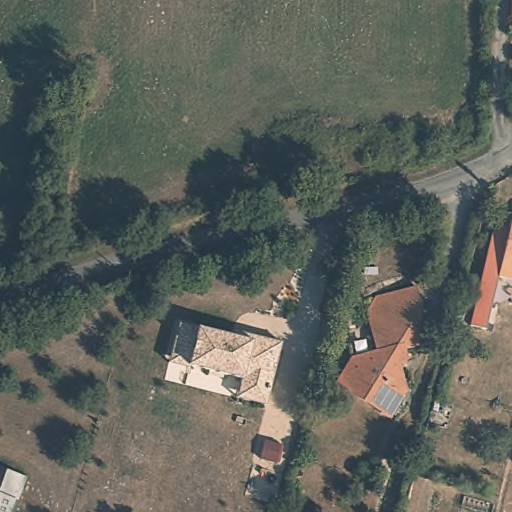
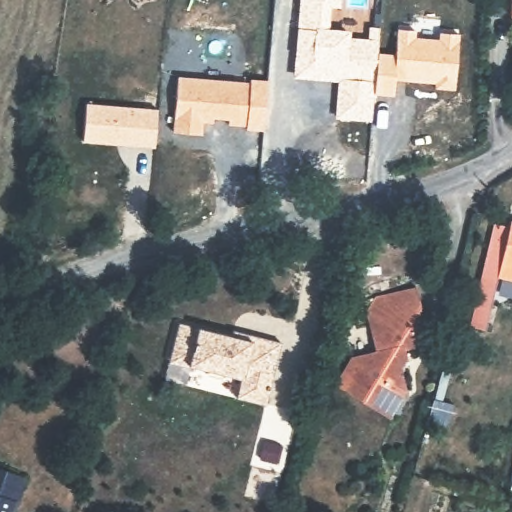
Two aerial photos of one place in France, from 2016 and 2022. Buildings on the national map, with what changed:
new [(311,78),(313,58),(299,57),(301,29),(303,0),(340,0),(339,7),(330,6),(329,30),(349,31),(349,38),(373,40),(374,28),(382,28),(380,53),(399,55),(399,29),(417,30),(417,37),(439,39),(440,32),(462,34),(458,89),(436,87),(437,81),(396,77),(394,95),(375,93),(373,120),(336,116),(340,79),(311,78)]
unchanged [(509,0),(512,0),(512,11),(508,10),(509,0)]
new [(178,76),(250,81),(250,78),(268,80),(264,131),(246,130),(246,126),(229,125),(229,120),(213,118),(212,124),(205,124),(204,135),(172,133),(178,76)]
new [(88,102),(159,109),(156,149),(83,142),(88,102)]
unchanged [(508,230),(510,224),(512,225),(512,283),(497,279),(484,332),(468,328),(494,226),(508,230)]
unchanged [(421,349),(406,351),(407,358),(399,360),(405,393),(385,418),(375,411),(377,403),(352,383),(342,384),(333,377),(351,354),(374,350),(368,314),(378,299),(418,291),(422,309),(414,311),(421,349)]
unchanged [(187,365),(186,368),(170,364),(171,357),(179,324),(197,328),(232,336),(234,330),(255,335),(285,342),(273,387),(269,404),(240,397),(244,380),(187,365)]
unchanged [(27,477),(12,512),(0,512),(0,467),(27,477)]
unchanged [(432,480),(425,501),(409,496),(414,474),(432,480)]

